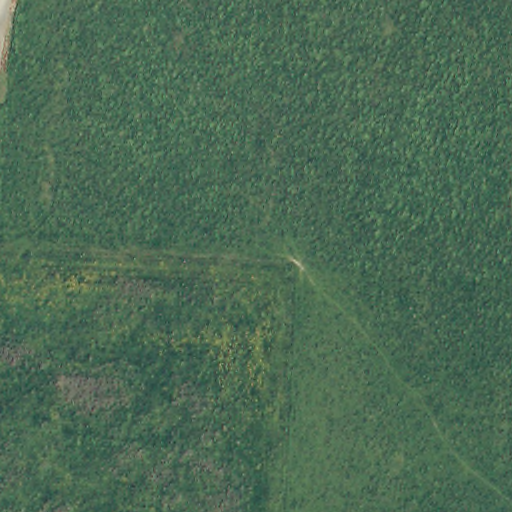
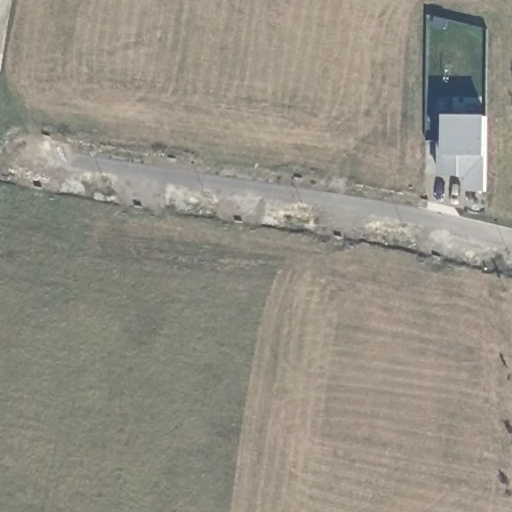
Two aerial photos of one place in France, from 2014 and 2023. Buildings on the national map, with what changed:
new [(487,156),(489,189),(468,189),(467,176),(445,176),(446,151),(445,114),(488,115),(487,156)]

